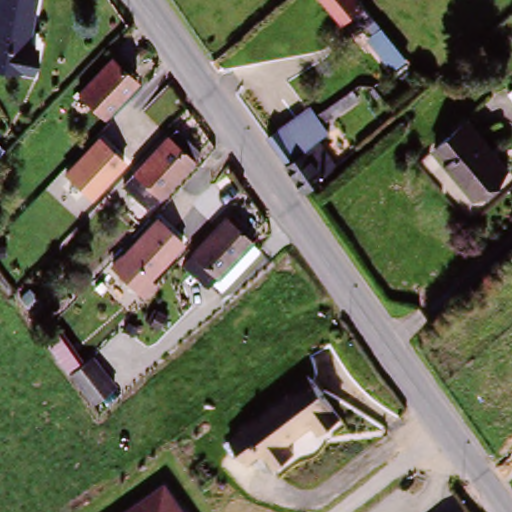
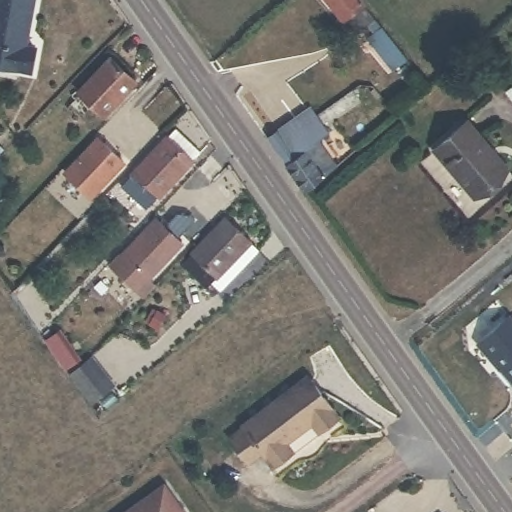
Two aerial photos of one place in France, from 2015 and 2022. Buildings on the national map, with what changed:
unchanged [(35,51),(31,76),(0,71),(0,0),(33,0),(25,50),(35,51)]
unchanged [(341,15),(328,0),(354,0),(355,2),(341,15)]
unchanged [(392,60),(389,63),(357,27),(369,17),(412,65),(404,72),(392,60)]
unchanged [(113,62),(136,83),(104,120),(80,99),(113,62)]
unchanged [(282,167),(265,142),(307,107),(327,132),(312,145),(282,167)]
unchanged [(137,179),(147,167),(190,121),(199,111),(222,132),(212,142),(170,189),(160,200),(137,179)]
unchanged [(512,168),(512,171),(475,204),(430,153),(470,119),(512,168)]
unchanged [(62,184),(105,135),(127,154),(84,203),(77,210),(56,191),(62,184)]
unchanged [(315,192),(305,200),(282,167),(312,145),(335,175),(315,192)]
unchanged [(123,256),(135,243),(180,194),(204,216),(160,265),(147,278),(123,256)]
unchanged [(216,280),(207,288),(181,263),(225,216),(239,229),(252,242),(264,252),(227,291),(216,280)]
unchanged [(165,334),(155,326),(165,313),(175,322),(165,334)]
new [(512,321),(512,382),(480,346),(510,319),(512,321)]
unchanged [(95,367),(117,389),(99,404),(78,382),(95,367)]
unchanged [(226,439),(240,429),(310,377),(342,417),(320,433),(314,424),(284,446),(290,454),(270,468),(259,455),(245,465),(226,439)]
unchanged [(184,512),(122,512),(162,483),(184,512)]

